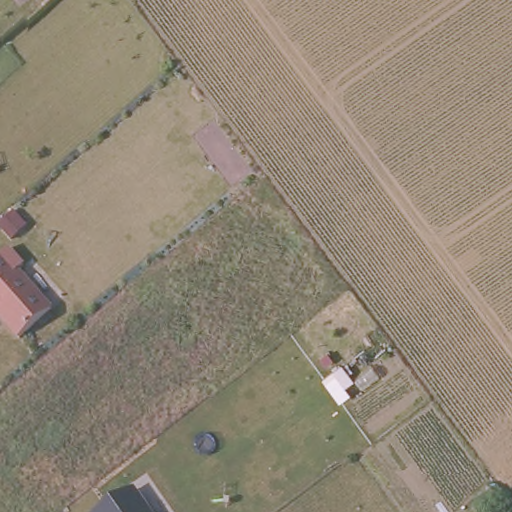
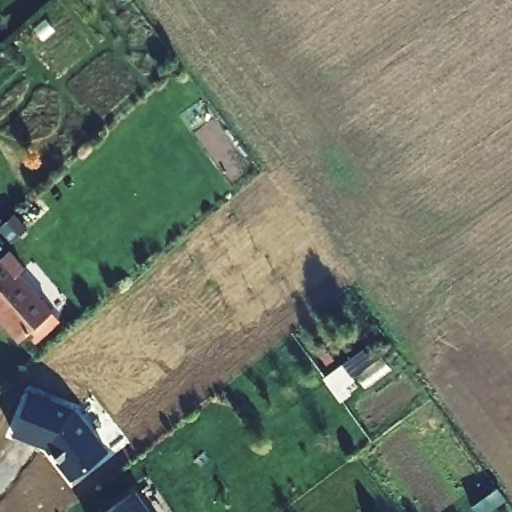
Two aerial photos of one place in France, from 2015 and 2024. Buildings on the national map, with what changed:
unchanged [(5,258),(20,276),(14,281),(47,320),(15,348),(0,332),(0,262),(5,258)]
new [(75,408),(109,451),(72,481),(45,447),(12,435),(30,391),(75,408)]
unchanged [(142,488),(161,512),(104,512),(136,487),(142,488)]

